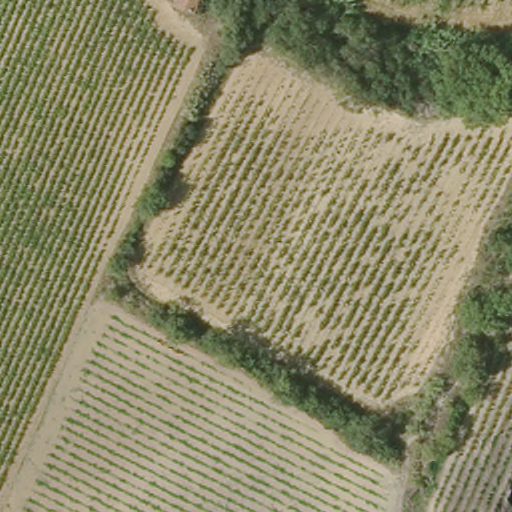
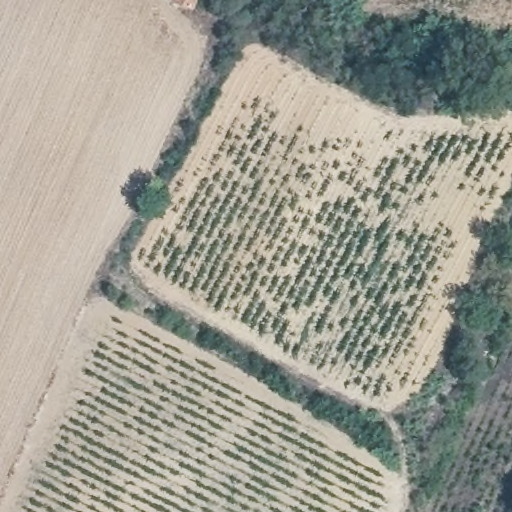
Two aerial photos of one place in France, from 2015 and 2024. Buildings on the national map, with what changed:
unchanged [(176,4),(178,0),(201,0),(195,13),(176,4)]

